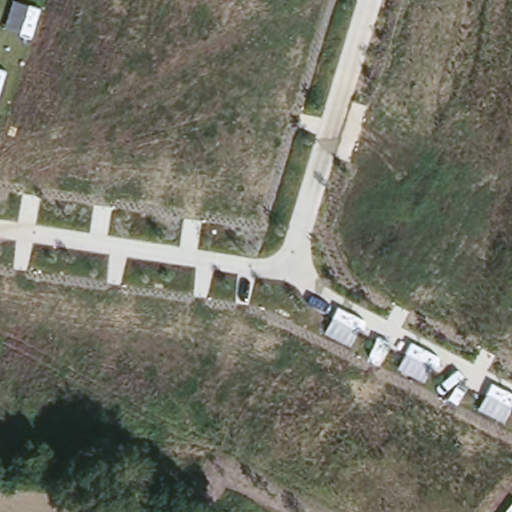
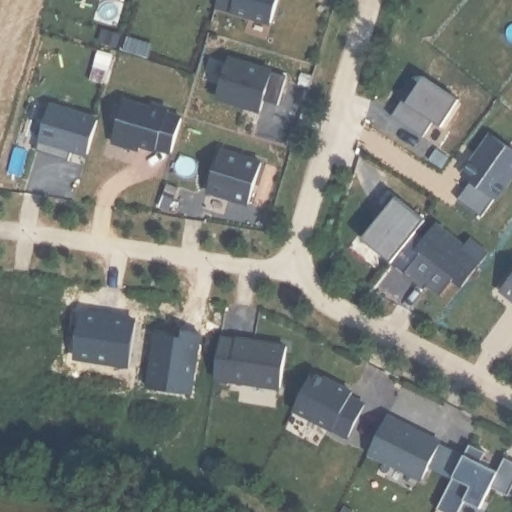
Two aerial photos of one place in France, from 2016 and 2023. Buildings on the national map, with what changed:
new [(221,0),(281,0),(275,23),(220,6),(221,0)]
new [(232,58),(290,76),(281,105),(267,100),(263,110),(220,97),(232,58)]
new [(420,69),(457,94),(441,123),(433,118),(422,135),(389,112),(420,69)]
new [(185,116),(174,151),(145,143),(144,147),(114,139),(125,97),(185,116)]
new [(47,109),(94,122),(86,156),(35,145),(47,109)]
new [(458,196),(466,187),(460,182),(469,172),(463,168),(490,132),(512,148),(512,176),(482,213),(458,196)]
new [(211,191),(224,150),(265,162),(252,204),(211,191)]
new [(423,219),(392,259),(361,236),(385,207),(381,203),(389,191),(423,219)]
new [(410,269),(424,252),(421,249),(440,225),(467,248),(473,241),(489,254),(463,285),(457,280),(442,296),(410,269)]
new [(428,239),(421,249),(424,252),(410,269),(430,286),(427,289),(394,263),(420,232),(428,239)]
new [(512,269),(512,300),(497,287),(512,269)]
new [(132,313),(129,362),(91,359),(92,351),(75,349),(80,309),(132,313)]
new [(150,382),(154,331),(179,334),(179,323),(196,324),(190,384),(150,382)]
new [(291,341),(285,387),(217,377),(224,331),(291,341)]
new [(315,371),(355,391),(352,395),(366,402),(347,438),(295,410),(315,371)]
new [(384,418),(438,443),(421,477),(367,452),(384,418)]
new [(500,472),(507,458),(512,460),(512,494),(511,497),(493,488),(482,509),(467,501),(461,512),(445,512),(440,509),(472,444),(488,453),(483,463),(500,472)]
new [(491,467),(483,463),(486,458),(493,463),(491,467)]
new [(350,510),(349,512),(341,512),(343,506),(350,510)]

